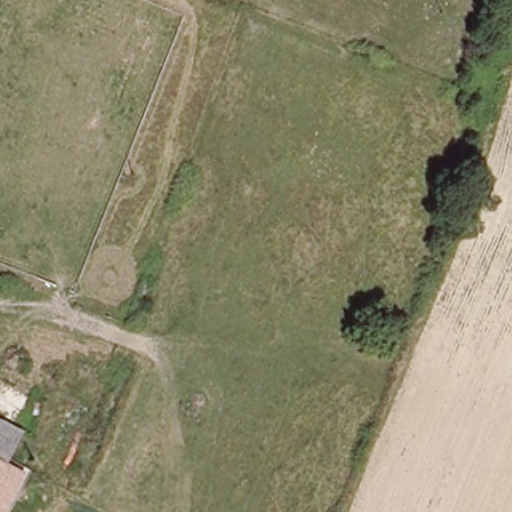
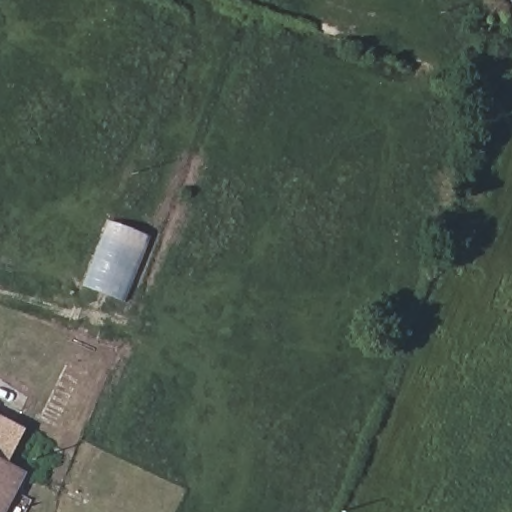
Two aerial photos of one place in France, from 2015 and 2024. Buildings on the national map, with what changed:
new [(150,237),(125,300),(84,285),(109,221),(150,237)]
unchanged [(1,397),(18,405),(10,419),(31,432),(14,466),(0,459),(0,398),(1,397)]
unchanged [(14,466),(0,491),(0,459),(14,466)]
unchanged [(27,473),(6,512),(0,512),(0,491),(14,466),(27,473)]

